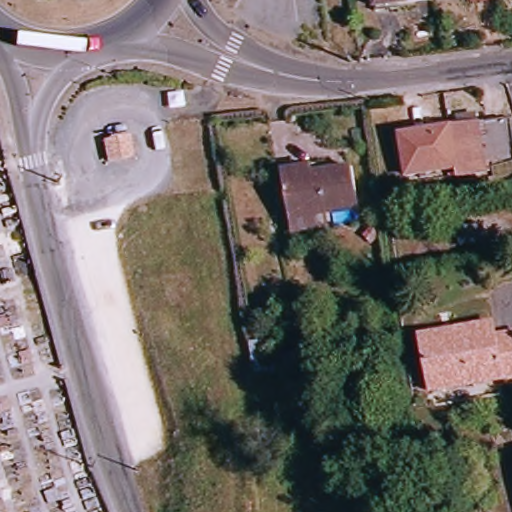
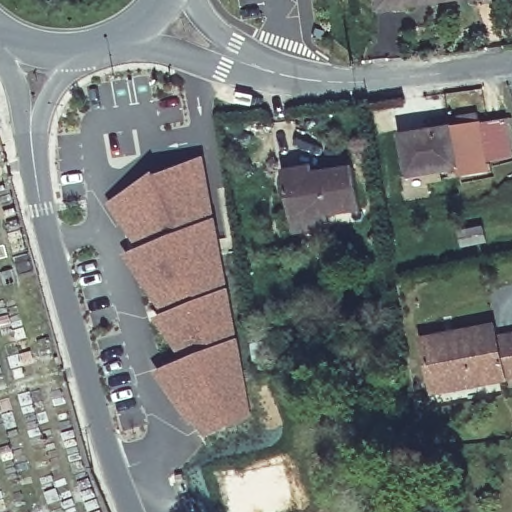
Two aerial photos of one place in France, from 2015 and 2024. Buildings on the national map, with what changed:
unchanged [(391,3),(391,0),(415,0),(391,3)]
unchanged [(510,117),(512,128),(512,157),(489,160),(490,177),(470,181),(462,123),(510,117)]
unchanged [(470,181),(463,182),(461,177),(417,182),(409,130),(435,126),(461,123),(462,123),(470,181)]
new [(181,361),(152,318),(162,315),(122,255),(139,250),(107,205),(155,172),(156,176),(203,157),(215,219),(228,288),(236,338),(250,417),(203,436),(194,422),(189,425),(153,372),(181,361)]
unchanged [(295,172),(294,166),(322,162),(325,169),(355,166),(363,165),(368,207),(361,207),(301,216),(295,172)]
unchanged [(486,245),(460,247),(459,227),(484,226),(486,245)]
unchanged [(425,336),(450,332),(491,327),(493,338),(512,336),(512,384),(433,394),(425,336)]

